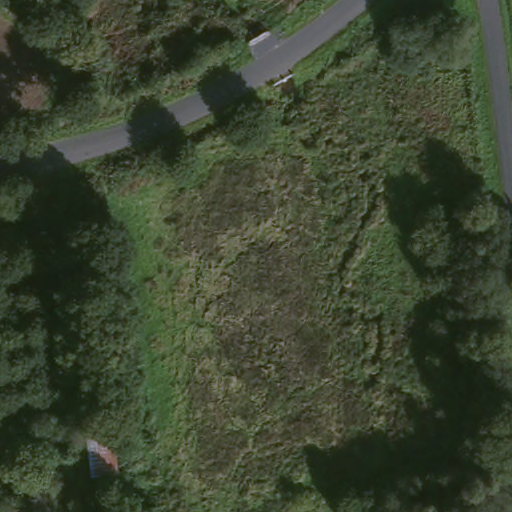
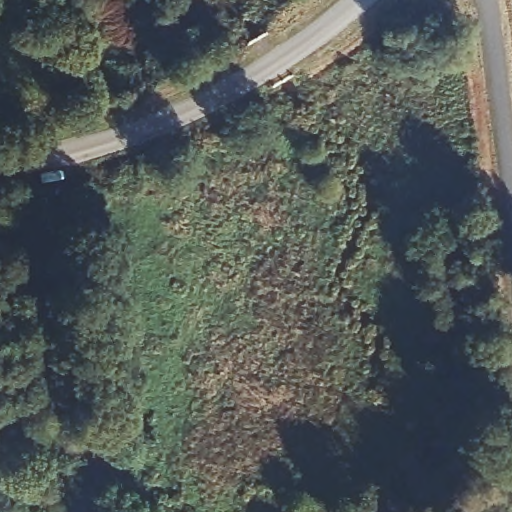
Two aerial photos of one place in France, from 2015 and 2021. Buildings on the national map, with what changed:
unchanged [(101,365),(92,268),(109,268),(122,364),(101,365)]
unchanged [(92,475),(87,430),(110,427),(115,473),(92,475)]

